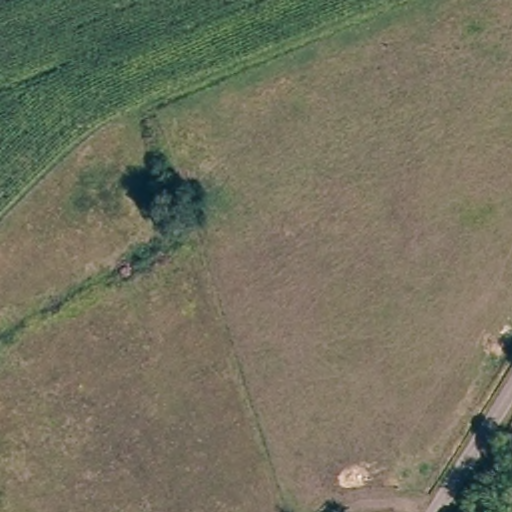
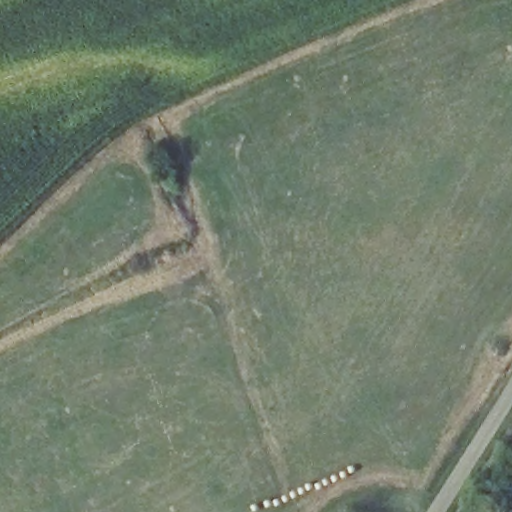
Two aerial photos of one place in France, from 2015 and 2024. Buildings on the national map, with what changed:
[]

